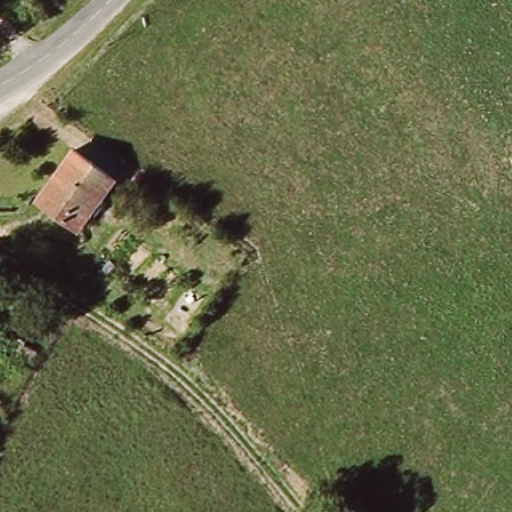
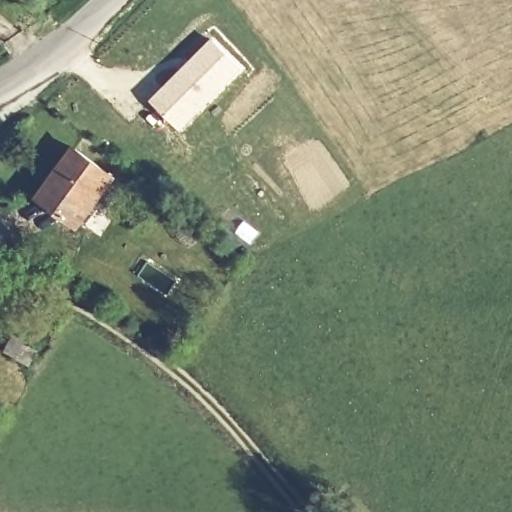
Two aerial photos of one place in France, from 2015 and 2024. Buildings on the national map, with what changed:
new [(212,37),(245,69),(181,132),(148,100),(212,37)]
unchanged [(44,197),(81,151),(107,170),(113,176),(77,222),(69,217),(44,197)]

